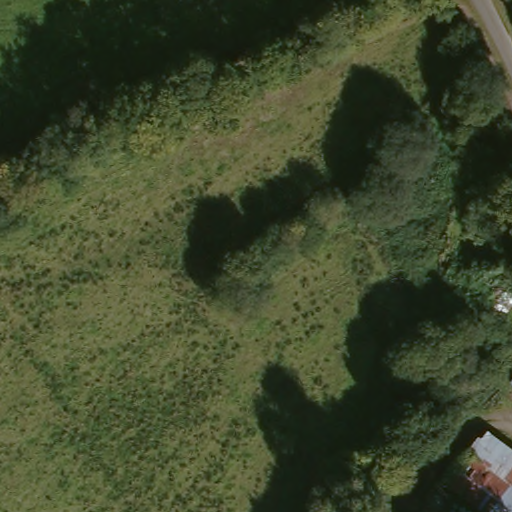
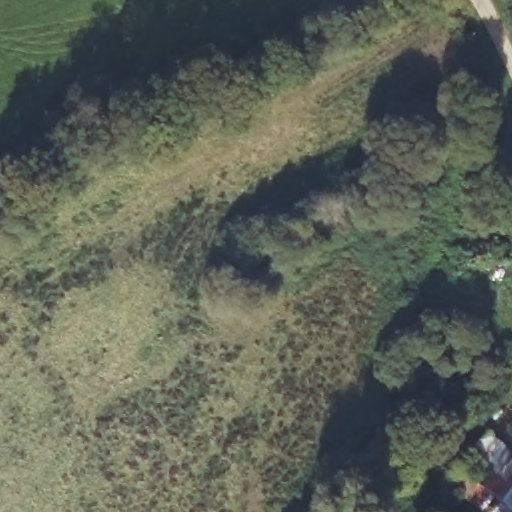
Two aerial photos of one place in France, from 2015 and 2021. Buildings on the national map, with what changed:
unchanged [(512,468),(512,492),(469,457),(483,444),(512,468)]
unchanged [(512,492),(512,512),(473,512),(444,488),(454,475),(465,462),(469,457),(512,492)]

